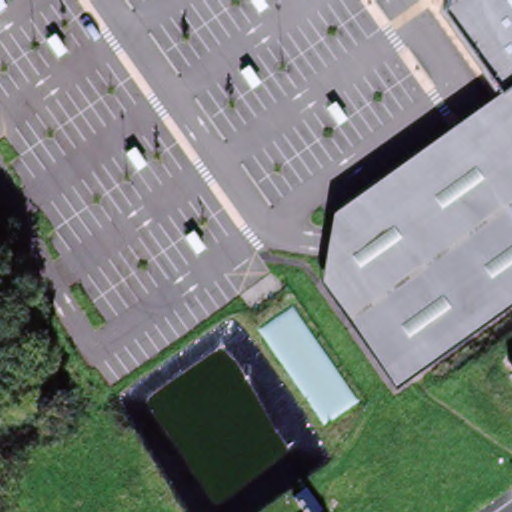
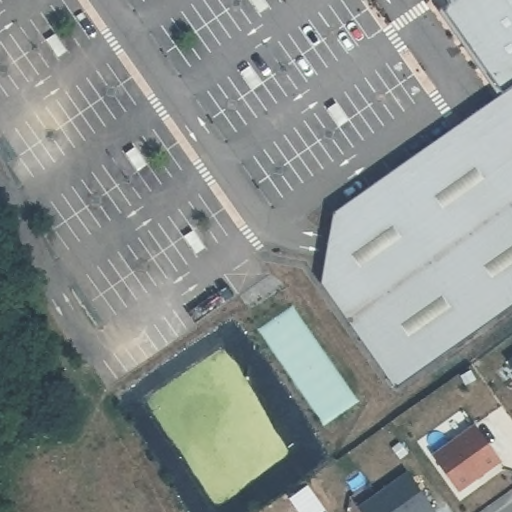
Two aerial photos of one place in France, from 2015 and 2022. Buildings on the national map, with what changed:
unchanged [(394,388),(321,283),(333,214),(504,93),(443,15),(448,0),(512,0),(512,305),(394,388)]
unchanged [(512,359),(512,362),(511,359),(512,359)]
new [(475,426),(501,463),(460,492),(434,456),(475,426)]
new [(362,512),(358,505),(406,471),(438,512),(362,512)]
new [(323,512),(302,512),(292,498),(306,488),(323,512)]

